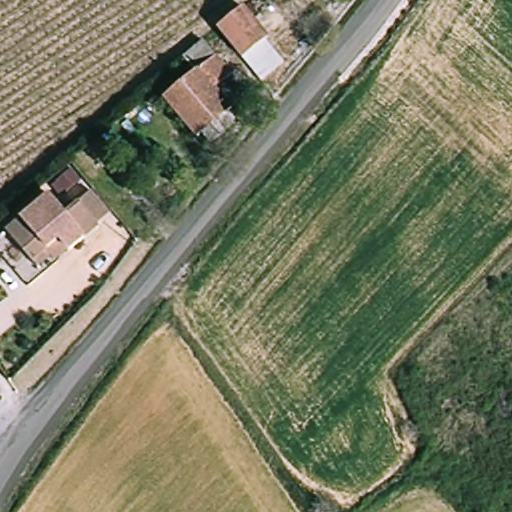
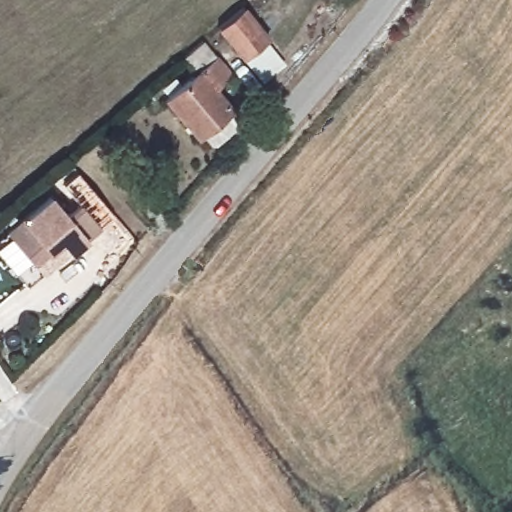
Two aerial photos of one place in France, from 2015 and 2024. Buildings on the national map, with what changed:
unchanged [(244,6),(270,36),(245,58),(219,27),(244,6)]
unchanged [(209,128),(196,136),(167,95),(198,69),(190,57),(210,42),(235,76),(221,87),(234,107),(229,113),(236,123),(215,136),(209,128)]
unchanged [(25,267),(0,239),(0,236),(50,190),(66,205),(78,194),(99,218),(62,252),(33,277),(25,267)]

